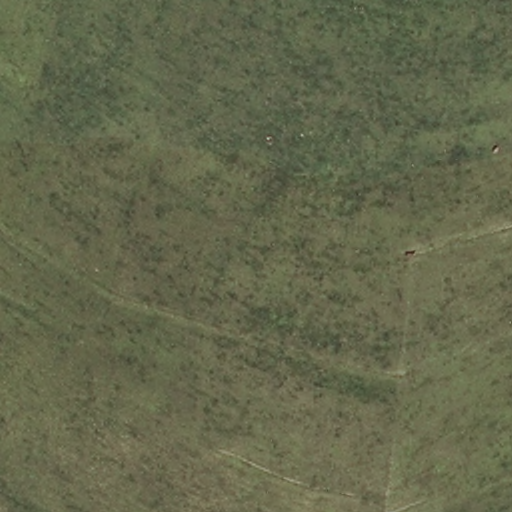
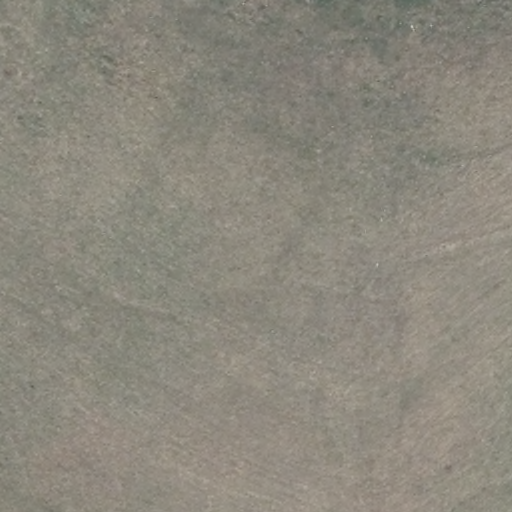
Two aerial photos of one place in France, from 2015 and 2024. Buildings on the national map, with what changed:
[]

